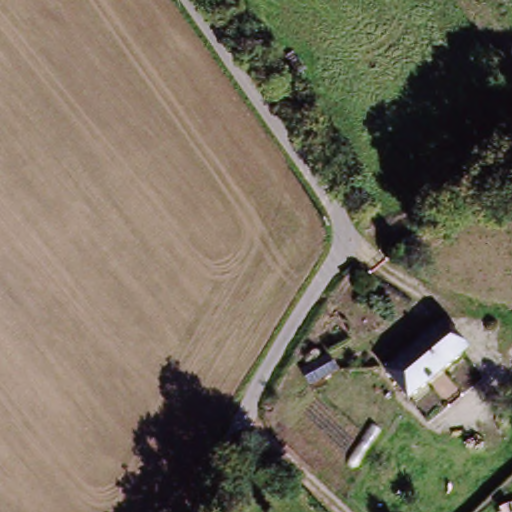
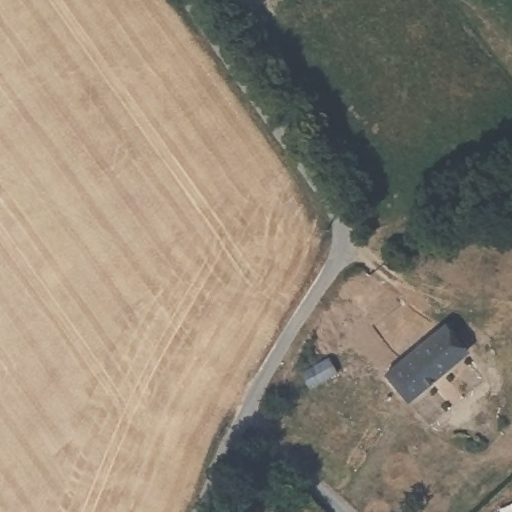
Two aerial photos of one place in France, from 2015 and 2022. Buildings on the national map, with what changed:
unchanged [(404,402),(381,371),(436,328),(460,359),(404,402)]
unchanged [(332,359),(340,373),(312,389),(303,375),(332,359)]

